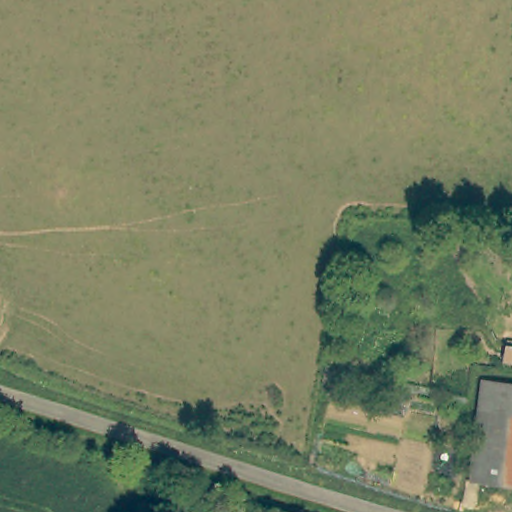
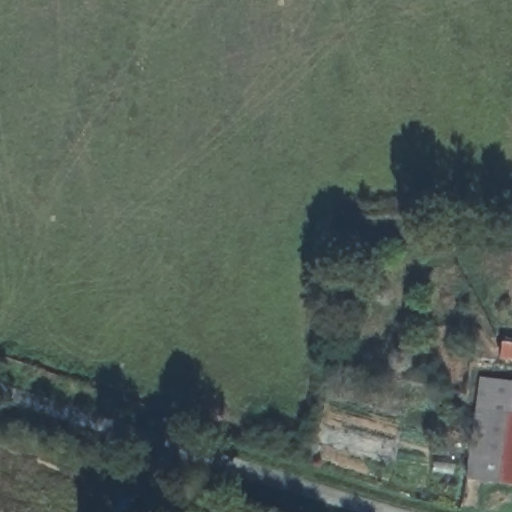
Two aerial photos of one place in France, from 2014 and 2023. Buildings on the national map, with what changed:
unchanged [(482,379),(512,383),(512,418),(509,418),(503,484),(470,480),(482,379)]
unchanged [(512,418),(512,486),(503,484),(509,418),(512,418)]

